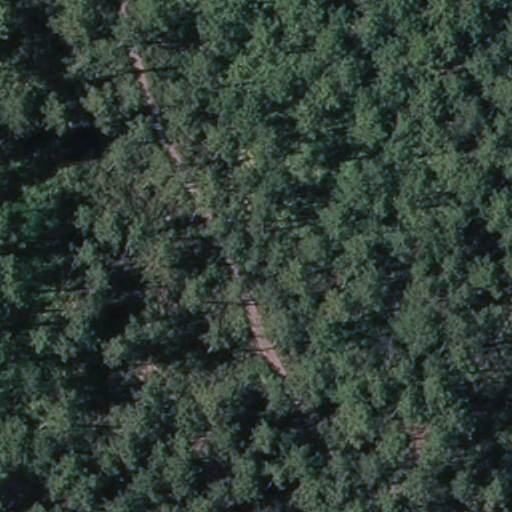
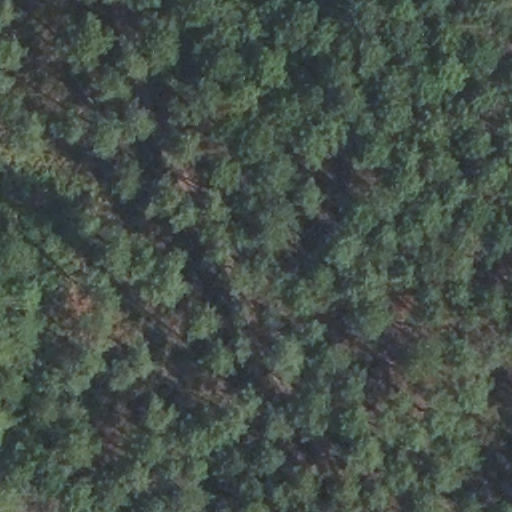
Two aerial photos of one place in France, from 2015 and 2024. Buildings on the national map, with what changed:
[]

